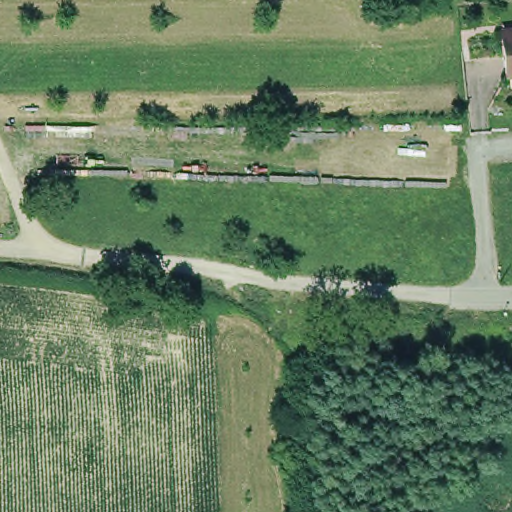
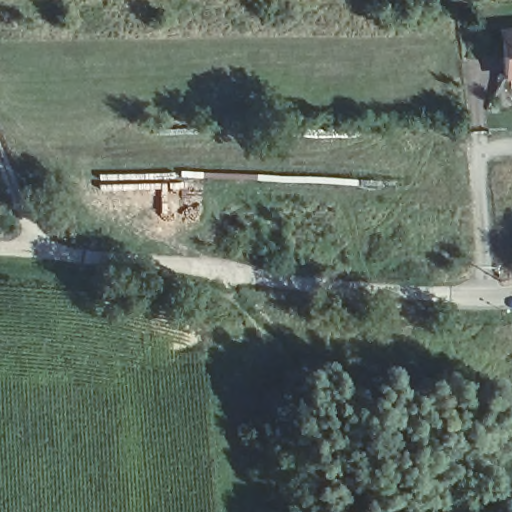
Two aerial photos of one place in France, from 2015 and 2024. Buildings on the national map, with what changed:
unchanged [(512,71),(501,71),(497,30),(512,29),(512,71)]

